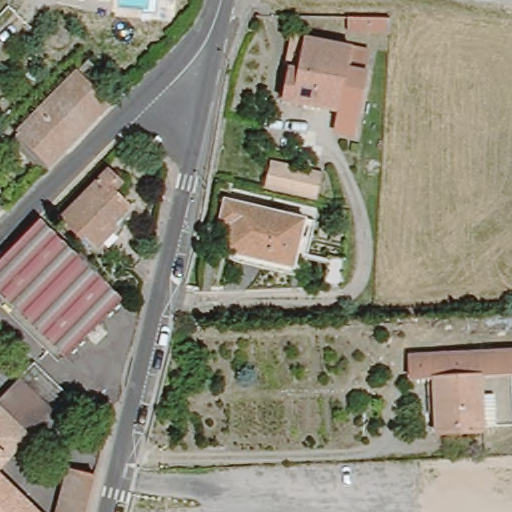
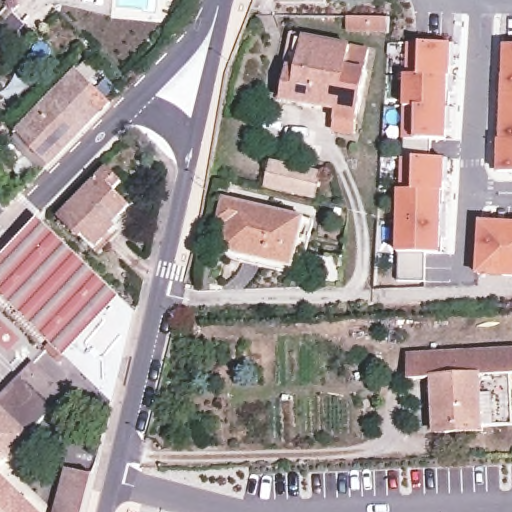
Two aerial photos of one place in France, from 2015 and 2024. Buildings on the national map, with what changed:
unchanged [(391,30),(352,34),(351,15),(390,14),(391,30)]
new [(421,250),(419,279),(393,278),(395,187),(396,187),(397,154),(398,154),(399,103),(400,103),(403,39),(444,40),(449,40),(449,64),(444,64),(444,73),(448,73),(448,90),(444,90),(443,105),(445,104),(446,128),(441,127),(440,137),(424,136),(424,155),(439,156),(444,156),(443,180),(439,180),(439,195),(445,195),(444,243),(438,243),(437,251),(421,250)]
new [(495,139),(492,139),(494,122),(498,123),(497,139),(502,68),(498,68),(499,44),(504,44),(512,45),(512,174),(493,173),(488,172),(490,148),(494,148),(495,139)]
unchanged [(356,147),(340,144),(335,143),(339,123),(289,113),(294,85),(286,84),(294,51),(306,53),(351,60),(371,64),(364,91),(368,92),(356,147)]
unchanged [(14,129),(84,60),(96,73),(88,81),(107,102),(44,163),(14,129)]
new [(500,93),(496,93),(497,76),(501,77),(500,93)]
unchanged [(323,174),(317,198),(271,188),(276,165),(323,174)]
unchanged [(136,206),(111,231),(95,247),(80,234),(78,236),(58,217),(104,171),(118,183),(111,190),(130,207),(133,203),(136,206)]
unchanged [(231,254),(227,252),(224,248),(221,244),(221,240),(220,237),(223,225),(215,223),(220,204),(300,220),(289,266),(231,254)]
unchanged [(108,391),(49,337),(0,289),(0,256),(34,222),(129,309),(108,391)]
new [(470,229),(495,230),(496,223),(512,224),(512,238),(509,237),(509,235),(494,234),(492,275),(467,274),(470,229)]
new [(494,234),(509,235),(509,237),(512,238),(512,277),(492,275),(494,234)]
unchanged [(313,265),(329,265),(329,285),(328,292),(313,293),(313,286),(313,265)]
unchanged [(422,375),(419,353),(441,352),(487,350),(512,349),(512,370),(512,427),(491,424),(444,427),(437,428),(434,374),(422,375)]
unchanged [(0,402),(20,382),(36,366),(69,397),(54,412),(28,438),(0,413),(0,402)]
unchanged [(0,465),(0,413),(28,438),(0,465)]
unchanged [(69,467),(94,474),(84,512),(56,512),(69,467)]
unchanged [(0,478),(36,512),(0,512),(0,478)]

